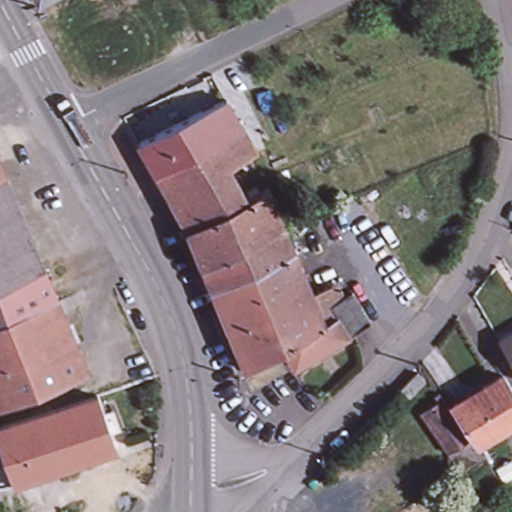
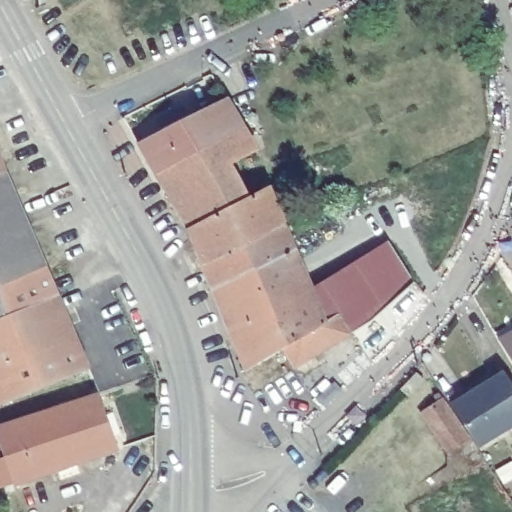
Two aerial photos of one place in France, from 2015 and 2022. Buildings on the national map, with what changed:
unchanged [(36,0),(40,0),(37,2),(36,0)]
unchanged [(239,202),(241,204),(189,229),(168,192),(158,173),(140,142),(227,97),(243,126),(257,152),(254,152),(253,152),(229,164),(239,184),(239,202)]
unchanged [(0,173),(0,157),(6,172),(0,173)]
unchanged [(0,282),(0,173),(6,172),(45,266),(0,282)]
unchanged [(295,246),(214,290),(189,229),(241,204),(239,202),(270,186),(286,222),(295,246)]
new [(354,291),(346,296),(340,283),(314,292),(389,239),(413,280),(373,322),(354,291)]
unchanged [(314,292),(340,283),(346,296),(354,291),(373,322),(351,335),(338,311),(331,315),(327,305),(318,308),(323,321),(283,345),(285,348),(248,370),(214,290),(295,246),(314,292)]
unchanged [(0,363),(0,282),(45,266),(74,333),(0,363)]
unchanged [(296,368),(285,348),(283,345),(323,321),(331,315),(338,311),(351,335),(296,368)]
unchanged [(498,341),(512,332),(512,364),(498,341)]
unchanged [(89,368),(71,376),(0,404),(0,363),(74,333),(89,367),(89,368)]
unchanged [(511,431),(505,421),(476,440),(470,431),(451,402),(500,369),(512,389),(512,430),(511,431)]
unchanged [(421,377),(406,395),(399,388),(414,371),(421,377)]
unchanged [(451,402),(470,431),(447,448),(419,407),(443,391),(451,402)]
unchanged [(120,447),(17,483),(16,481),(0,436),(0,426),(79,399),(100,392),(120,447)]
unchanged [(0,484),(0,436),(16,481),(0,484)]

